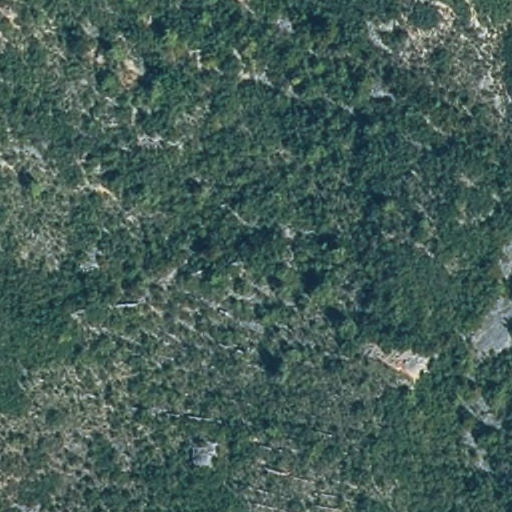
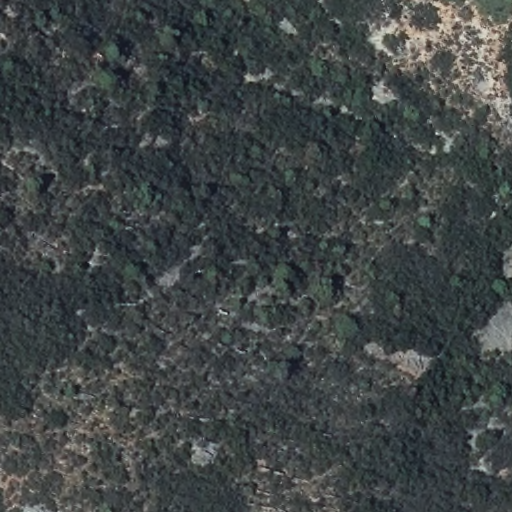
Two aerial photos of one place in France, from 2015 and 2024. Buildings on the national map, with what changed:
unchanged [(216,450),(212,464),(191,461),(194,445),(216,450)]

